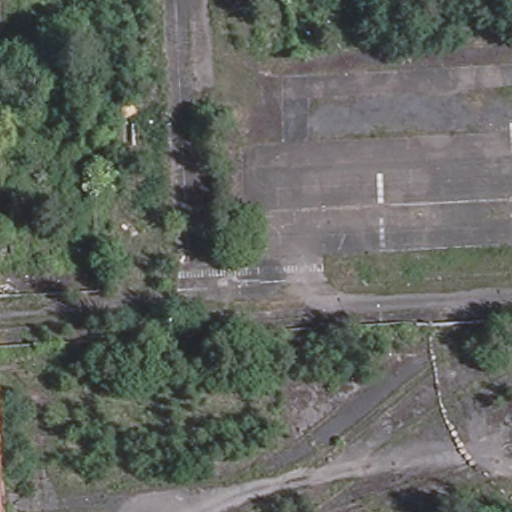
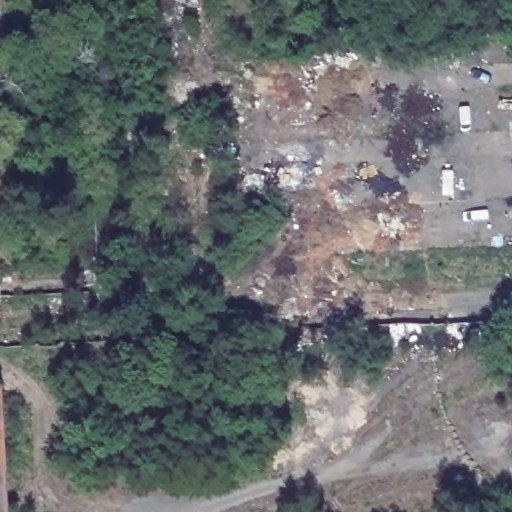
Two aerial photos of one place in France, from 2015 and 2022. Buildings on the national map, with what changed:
unchanged [(1,292),(0,293),(0,281),(1,292)]
unchanged [(4,465),(0,465),(0,404),(4,465)]
unchanged [(0,512),(0,465),(4,465),(6,512),(0,512)]

